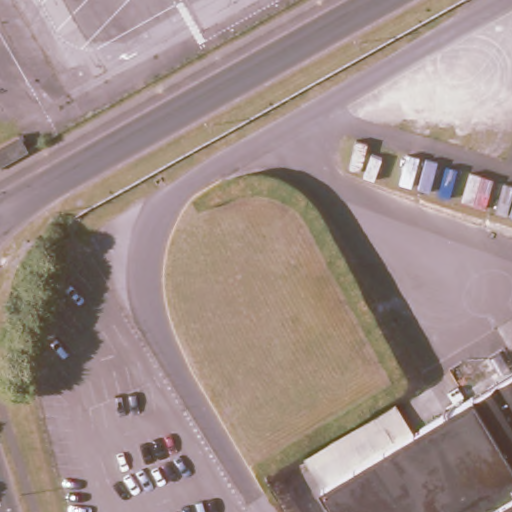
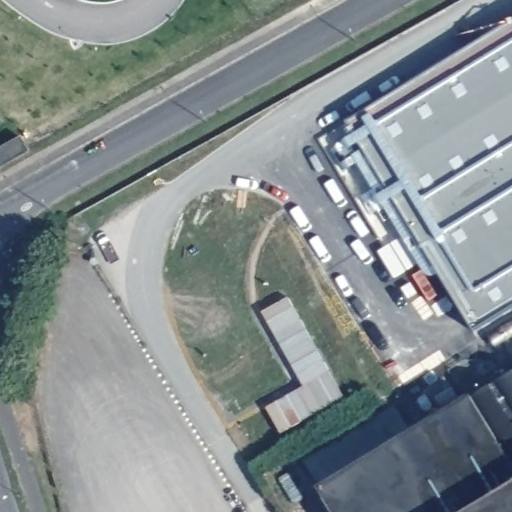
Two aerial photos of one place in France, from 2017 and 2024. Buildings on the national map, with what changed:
new [(512,309),(474,332),(344,124),(512,19),(512,309)]
unchanged [(20,135),(30,150),(0,167),(0,147),(20,135)]
unchanged [(347,412),(374,454),(512,370),(512,512),(335,512),(292,444),(347,412)]

